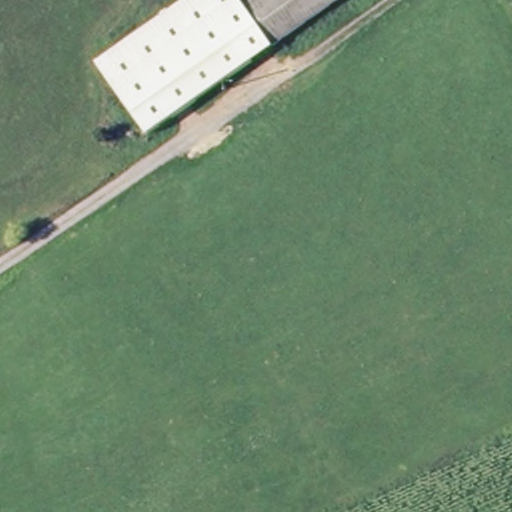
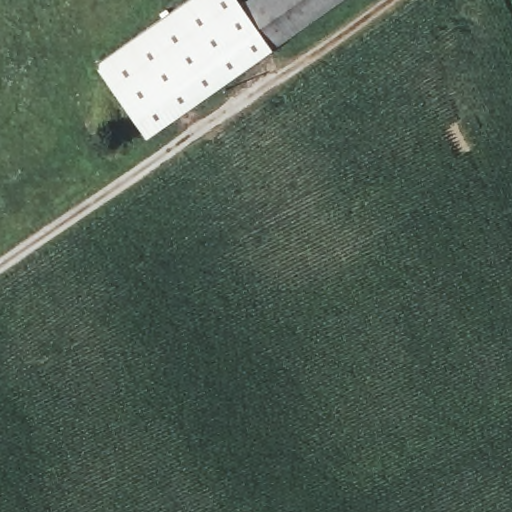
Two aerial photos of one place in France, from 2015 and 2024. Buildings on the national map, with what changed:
unchanged [(239,0),(240,1),(268,45),(194,94),(147,22),(180,0),(239,0)]
unchanged [(336,0),(268,45),(240,1),(241,0),(336,0)]
unchanged [(142,128),(94,57),(147,22),(194,94),(142,128)]

